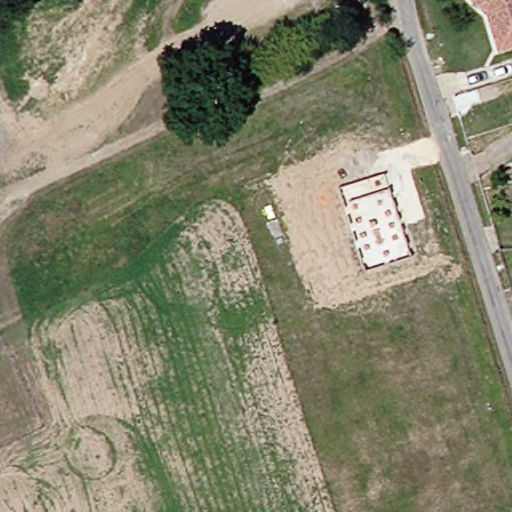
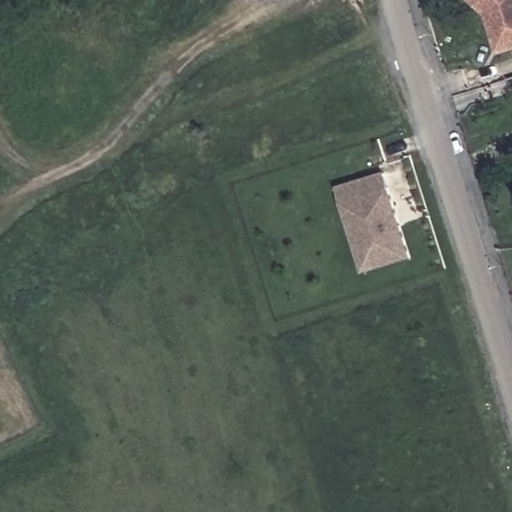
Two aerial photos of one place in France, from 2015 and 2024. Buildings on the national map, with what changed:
unchanged [(489,16),(472,0),(512,0),(512,49),(500,53),(489,16)]
new [(363,274),(337,187),(386,172),(412,259),(363,274)]

